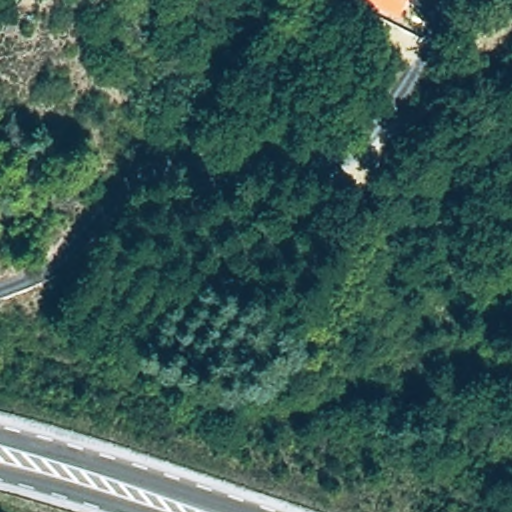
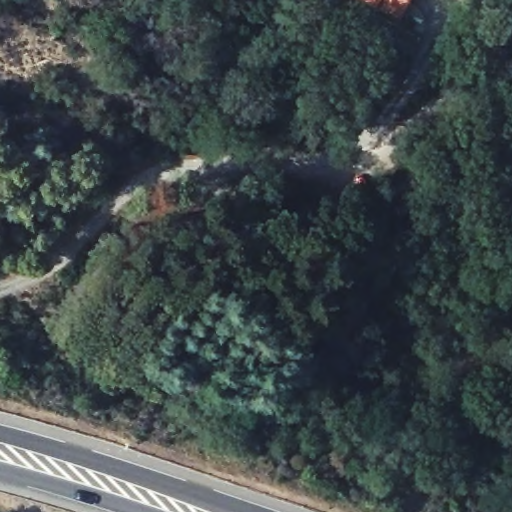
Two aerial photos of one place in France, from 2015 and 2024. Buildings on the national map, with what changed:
unchanged [(375,6),(361,0),(406,0),(398,17),(375,6)]

